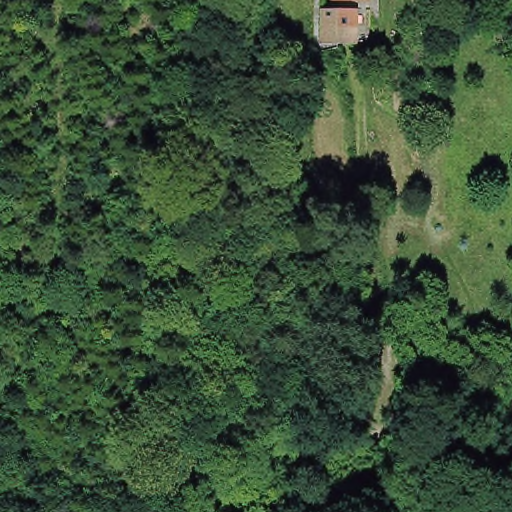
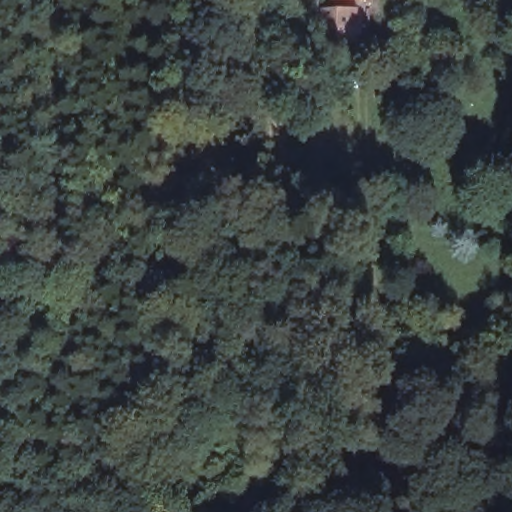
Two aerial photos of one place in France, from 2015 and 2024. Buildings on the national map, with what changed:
unchanged [(322,43),(323,10),(357,10),(356,44),(322,43)]

